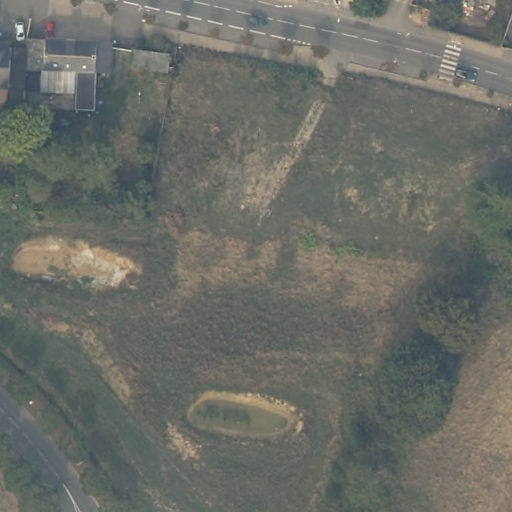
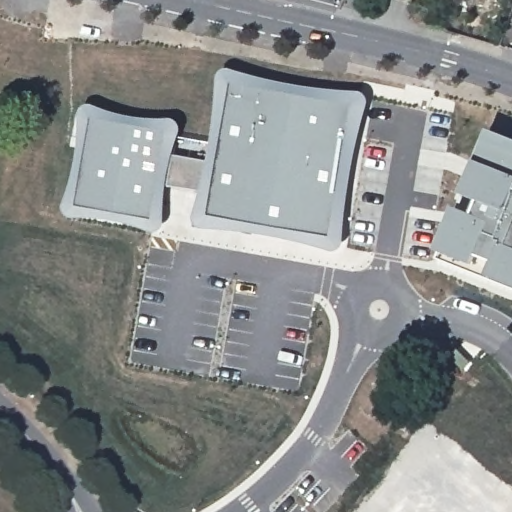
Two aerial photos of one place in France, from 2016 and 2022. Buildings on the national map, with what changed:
demolished [(0,84),(0,38),(10,38),(10,42),(10,80),(10,84),(0,84)]
demolished [(111,41),(110,70),(96,70),(95,110),(78,110),(79,70),(74,70),(41,70),(40,90),(25,90),(25,81),(26,42),(26,39),(111,41)]
demolished [(170,55),(167,70),(132,65),(135,49),(170,55)]
new [(250,75),(272,80),(300,87),(325,90),(358,92),(362,92),(367,94),(370,100),(368,109),(365,119),(358,145),(352,177),(348,204),(347,235),(346,243),(342,248),(336,251),(331,252),(324,250),(300,243),(265,235),(218,230),(203,230),(197,227),(195,223),(195,215),(200,195),(201,192),(169,187),(167,195),(167,212),(166,225),(160,232),(155,234),(149,232),(122,223),(104,220),(83,220),(72,220),(67,216),(65,211),(65,206),(66,199),(71,184),(76,170),(79,151),(80,121),(82,111),(85,106),(90,105),(100,105),(104,107),(126,115),(145,119),(161,119),(175,119),(179,121),(180,126),(181,133),(175,146),(173,156),(206,161),(210,143),(218,89),(220,77),(223,72),(226,70),(232,69),(250,75)]
new [(480,201),(462,195),(475,160),(490,129),(512,138),(512,287),(489,277),(491,270),(438,251),(455,207),(476,216),(480,201)]
demolished [(207,141),(209,135),(210,136),(235,140),(269,146),(270,146),(265,190),(203,179),(204,176),(174,170),(178,136),(207,141)]
demolished [(395,168),(401,165),(412,156),(426,175),(415,184),(415,194),(420,201),(423,199),(437,217),(416,232),(403,214),(387,212),(386,215),(372,212),(371,214),(364,213),(358,205),(354,209),(340,206),(340,190),(351,180),(359,181),(364,175),(365,164),(395,168)]
demolished [(227,211),(231,212),(269,220),(259,237),(224,231),(227,211)]
demolished [(502,285),(512,259),(512,289),(502,285)]

